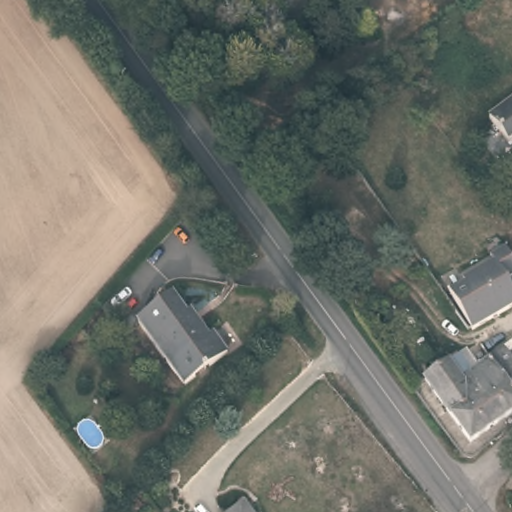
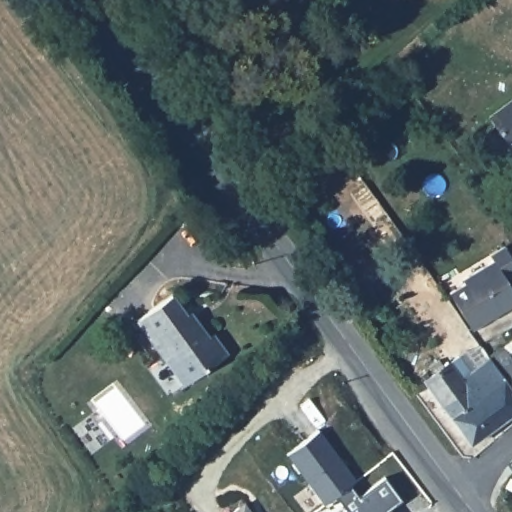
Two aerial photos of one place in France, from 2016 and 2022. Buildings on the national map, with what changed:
unchanged [(503,148),(486,121),(512,104),(512,144),(503,148)]
unchanged [(512,273),(512,280),(505,284),(512,295),(512,308),(472,334),(455,309),(450,301),(465,292),(463,289),(491,271),(485,263),(500,254),(512,273)]
unchanged [(174,301),(202,343),(212,338),(225,356),(182,386),(137,324),(174,301)]
unchanged [(512,350),(512,401),(488,367),(512,350)]
unchanged [(512,401),(512,418),(467,450),(449,426),(473,409),(458,388),(488,367),(512,401)]
unchanged [(420,388),(447,370),(458,388),(473,409),(449,426),(420,388)]
new [(318,430),(356,480),(350,484),(336,495),(324,503),(287,453),(318,430)]
new [(346,509),(336,495),(350,484),(359,496),(385,476),(402,500),(388,510),(389,512),(342,512),(346,509)]
unchanged [(242,508),(244,512),(237,512),(242,508)]

